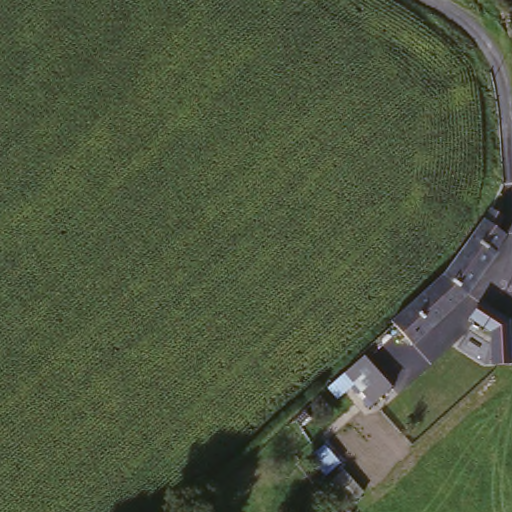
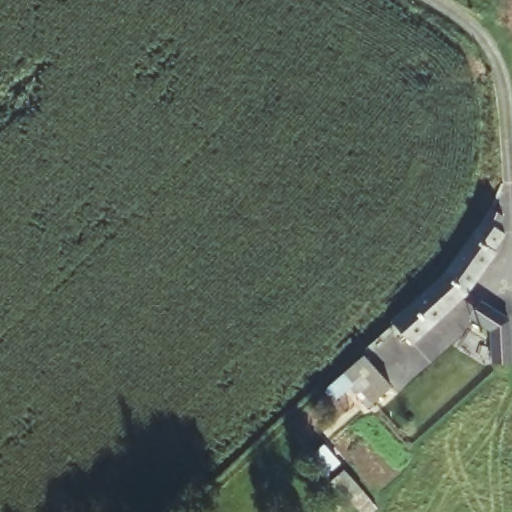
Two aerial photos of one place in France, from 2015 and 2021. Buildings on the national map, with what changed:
unchanged [(459,259),(503,209),(509,215),(499,238),(499,249),(489,259),(496,267),(481,282),(463,298),(413,348),(390,326),(441,276),(459,259)]
unchanged [(503,359),(502,332),(502,327),(499,325),(492,320),(487,316),(481,311),(489,302),(492,297),(503,305),(512,312),(512,359),(503,359)]
unchanged [(362,362),(389,389),(368,409),(342,381),(362,362)]

